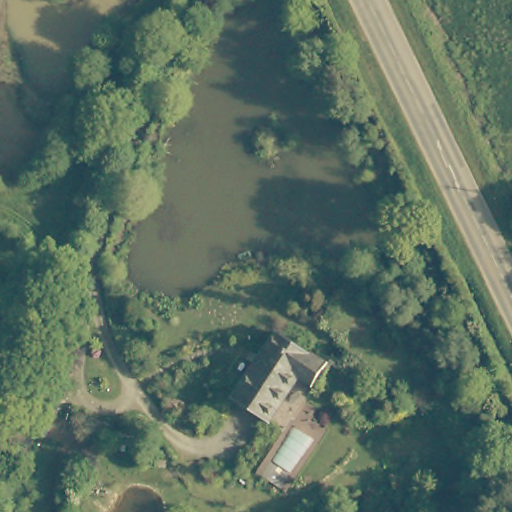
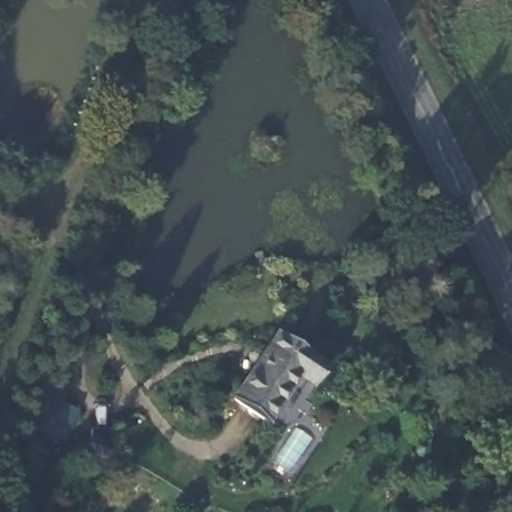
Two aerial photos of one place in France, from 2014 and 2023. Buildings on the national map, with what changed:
unchanged [(237,393),(278,325),(329,358),(318,376),(303,368),(274,416),(237,393)]
unchanged [(42,379),(66,386),(48,431),(25,426),(42,379)]

